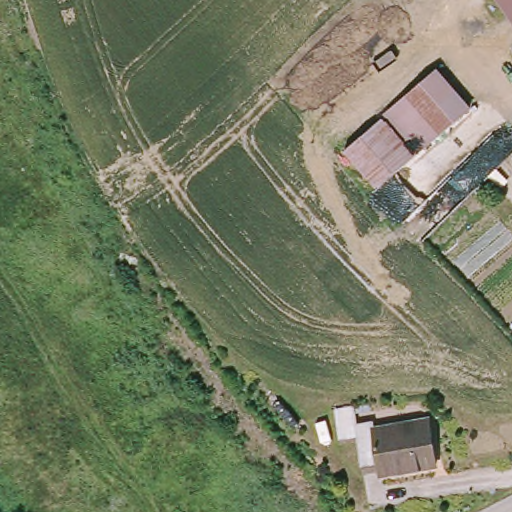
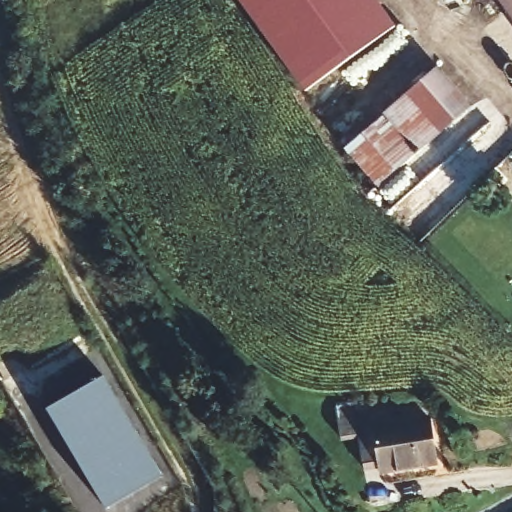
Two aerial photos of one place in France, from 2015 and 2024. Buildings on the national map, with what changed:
new [(390,24),(292,84),(238,0),(374,0),(390,24)]
unchanged [(498,0),(512,0),(512,19),(498,0)]
unchanged [(342,152),(442,62),(474,99),(378,190),(342,152)]
new [(164,475),(108,509),(50,408),(103,376),(164,475)]
unchanged [(378,418),(384,428),(413,411),(436,447),(400,466),(397,460),(384,468),(361,429),(378,418)]

